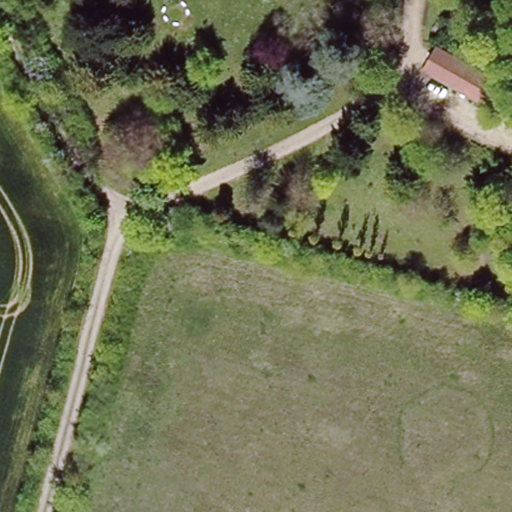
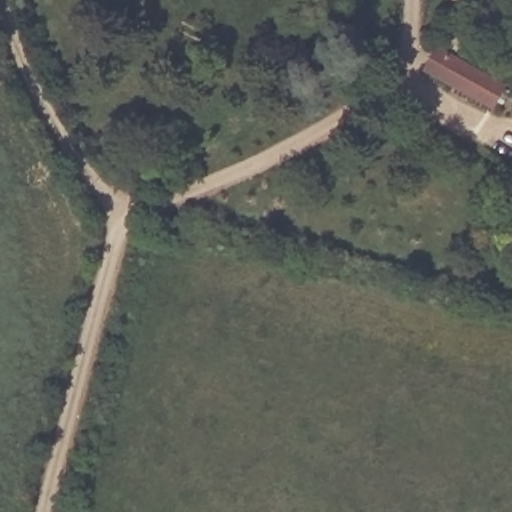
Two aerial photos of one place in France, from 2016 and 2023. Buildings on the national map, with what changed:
unchanged [(440,51),(506,83),(495,106),(430,73),(440,51)]

